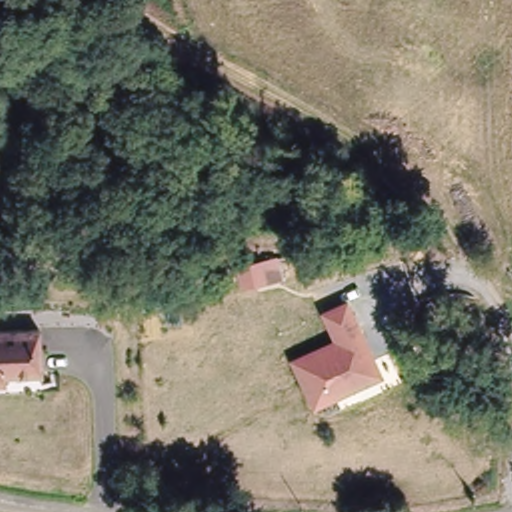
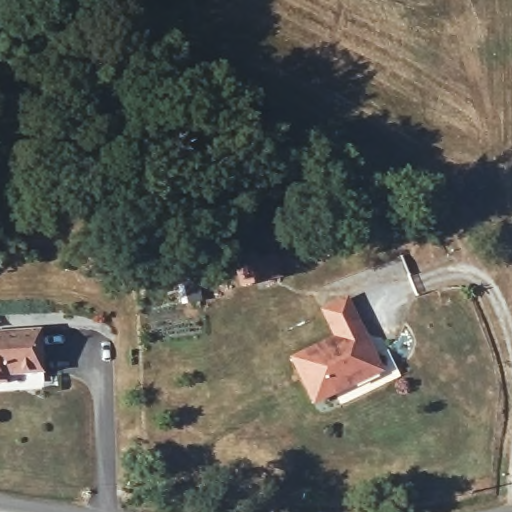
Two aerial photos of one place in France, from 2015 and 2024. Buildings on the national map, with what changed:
unchanged [(241,262),(264,255),(279,252),(284,270),(270,275),(246,281),(241,262)]
unchanged [(315,409),(290,365),(334,342),(318,316),(341,303),(356,329),(380,372),(315,409)]
unchanged [(4,373),(4,380),(0,380),(0,329),(39,329),(40,372),(4,373)]

